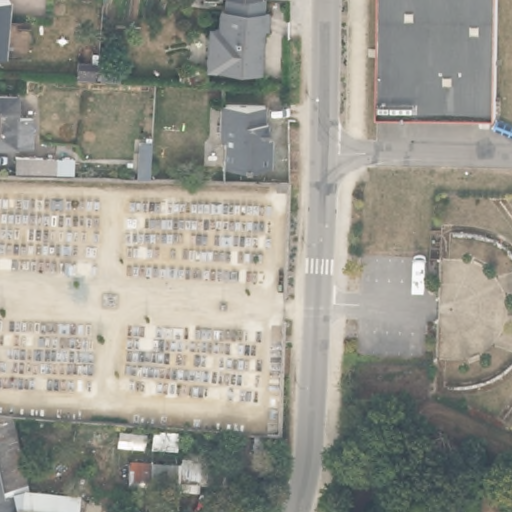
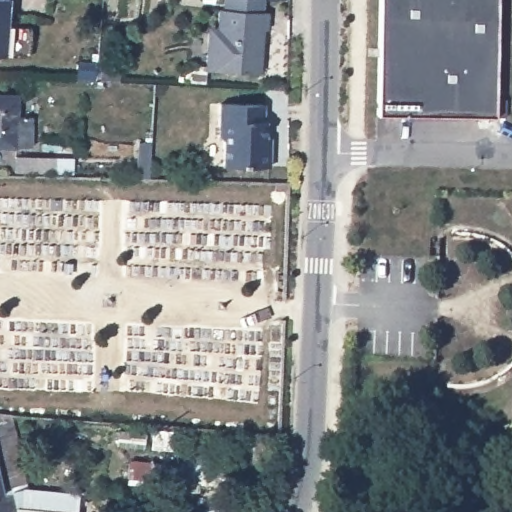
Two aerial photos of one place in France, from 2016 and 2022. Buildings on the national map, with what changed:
unchanged [(9,0),(4,56),(0,56),(0,0),(9,0)]
unchanged [(269,13),(268,30),(264,30),(263,45),(258,45),(257,53),(262,54),(261,74),(212,71),(208,66),(210,34),(215,29),(219,29),(220,10),(225,11),(226,0),(264,0),(263,13),(269,13)]
unchanged [(372,116),(374,0),(493,0),(491,117),(372,116)]
unchanged [(96,65),(96,76),(78,75),(79,64),(96,65)]
unchanged [(120,66),(119,80),(101,79),(102,66),(120,66)]
unchanged [(16,96),(16,118),(31,118),(31,148),(0,147),(0,96),(16,96)]
unchanged [(270,149),(270,167),(224,166),(225,141),(220,136),(220,104),(264,105),(264,121),(266,121),(266,138),(271,138),(270,149)]
unchanged [(137,179),(137,175),(139,142),(151,143),(150,176),(149,179),(137,179)]
unchanged [(73,174),(15,172),(16,157),(73,159),(73,174)]
unchanged [(10,410),(28,486),(77,491),(75,512),(0,512),(0,409),(10,410)]
unchanged [(178,433),(178,451),(151,450),(151,432),(178,433)]
unchanged [(180,465),(178,491),(127,485),(129,460),(180,465)]

